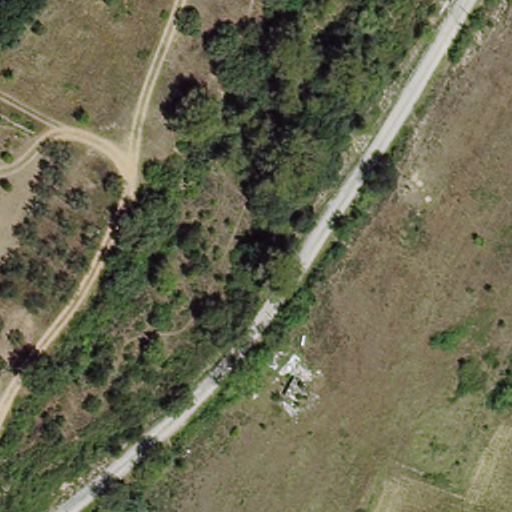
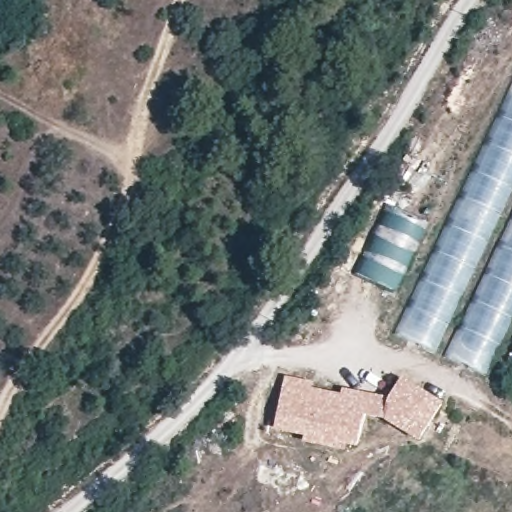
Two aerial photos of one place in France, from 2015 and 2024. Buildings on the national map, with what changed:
new [(486,374),(394,333),(512,87),(512,320),(486,374)]
new [(353,272),(386,203),(428,223),(394,293),(353,272)]
new [(419,443),(382,419),(366,418),(367,415),(361,413),(355,447),(346,445),(344,450),(301,442),(302,436),(272,430),(284,375),(313,382),(311,388),(340,394),(341,388),(388,397),(400,377),(442,403),(419,443)]

